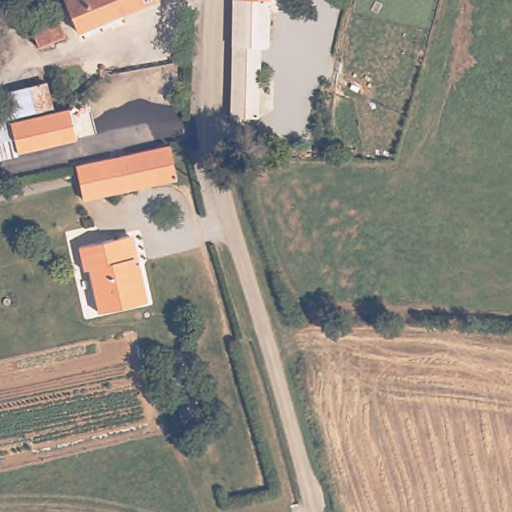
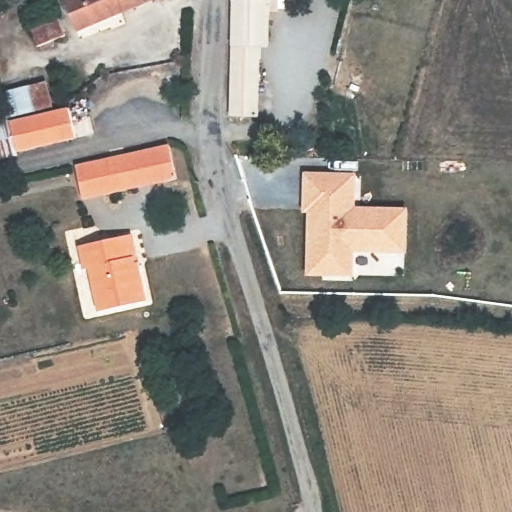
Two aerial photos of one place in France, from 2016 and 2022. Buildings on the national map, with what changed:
unchanged [(67,0),(138,0),(80,25),(69,4),(67,0)]
unchanged [(261,37),(257,105),(227,104),(234,0),(269,0),(267,37),(261,37)]
unchanged [(71,22),(47,32),(43,19),(64,9),(71,22)]
unchanged [(0,86),(43,76),(55,108),(69,104),(73,136),(0,154),(0,99),(2,98),(0,86)]
unchanged [(179,172),(85,196),(77,162),(103,155),(134,148),(170,139),(179,172)]
new [(409,253),(354,252),(354,275),(306,274),(307,212),(302,212),(304,171),(357,173),(356,205),(408,207),(409,253)]
unchanged [(127,233),(134,261),(141,259),(150,298),(105,310),(95,267),(86,270),(79,245),(127,233)]

